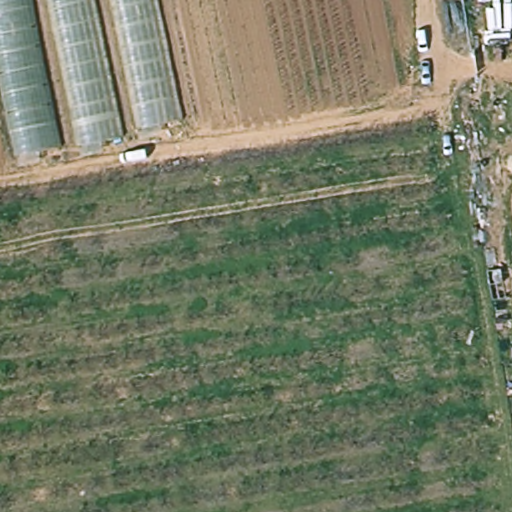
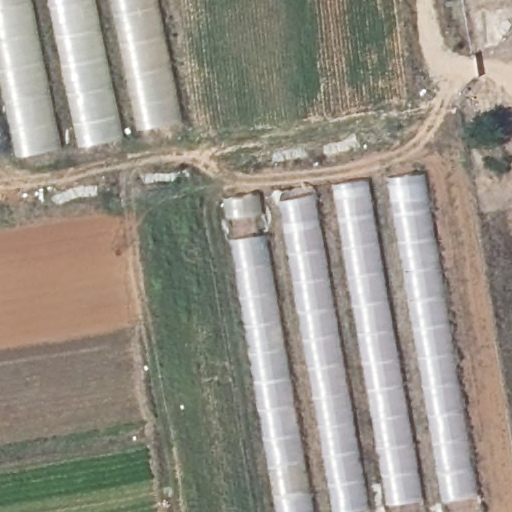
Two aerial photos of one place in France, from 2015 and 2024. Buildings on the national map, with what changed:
unchanged [(15,159),(0,85),(0,0),(158,0),(183,124),(15,159)]
new [(478,512),(274,512),(224,202),(422,174),(478,512)]

